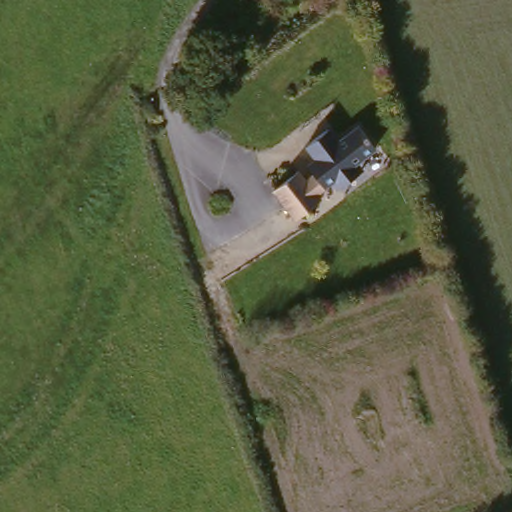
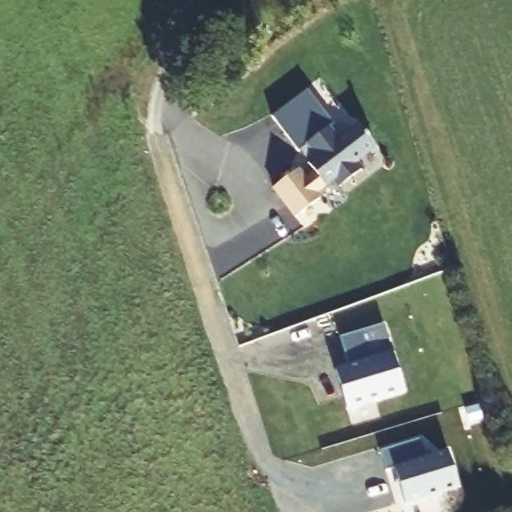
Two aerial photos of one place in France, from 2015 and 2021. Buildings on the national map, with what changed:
unchanged [(324,0),(311,10),(304,0),(324,0)]
unchanged [(294,174),(302,184),(311,177),(304,168),(311,162),(302,150),(323,133),(332,146),(353,130),(369,151),(349,167),(356,175),(334,191),(328,184),(310,197),(314,204),(291,222),(268,194),(294,174)]
new [(350,362),(341,334),(385,319),(407,386),(350,405),(337,367),(350,362)]
new [(425,456),(448,450),(461,487),(404,506),(393,470),(386,472),(380,451),(419,438),(425,456)]

